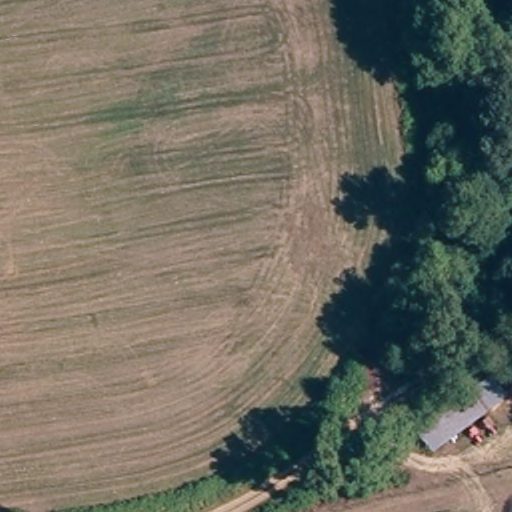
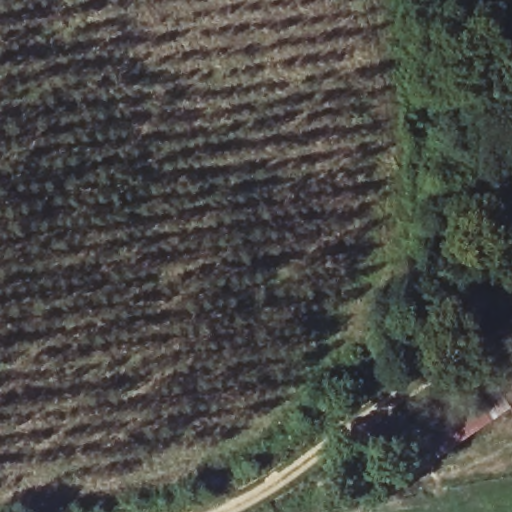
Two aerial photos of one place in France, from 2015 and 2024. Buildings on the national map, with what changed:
unchanged [(505,404),(427,456),(416,432),(492,380),(505,404)]

